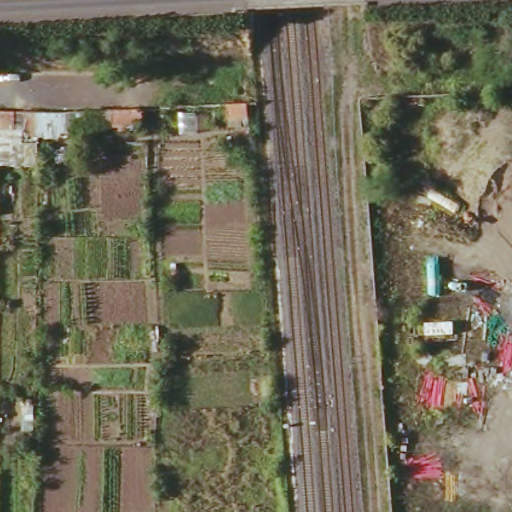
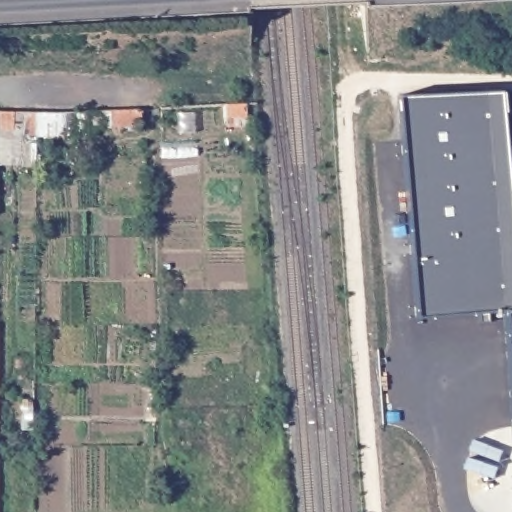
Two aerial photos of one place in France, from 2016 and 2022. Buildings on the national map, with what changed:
new [(505,312),(416,320),(399,98),(504,93),(512,197),(512,398),(505,312)]
unchanged [(224,105),(245,104),(245,118),(225,119),(224,105)]
unchanged [(108,111),(137,109),(138,125),(109,126),(108,111)]
unchanged [(11,130),(0,129),(0,111),(12,112),(11,130)]

